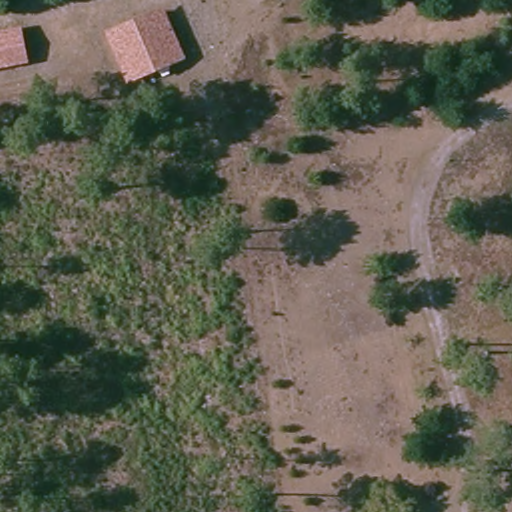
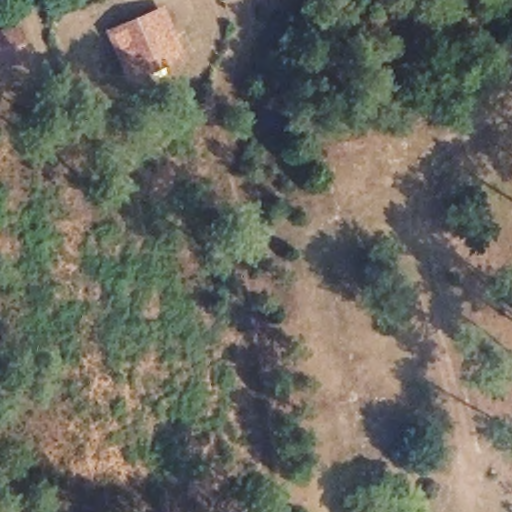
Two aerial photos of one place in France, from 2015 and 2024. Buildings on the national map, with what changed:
unchanged [(164,7),(187,57),(129,83),(106,30),(164,7)]
unchanged [(25,64),(0,67),(0,29),(19,25),(25,64)]
unchanged [(57,172),(16,180),(7,135),(48,128),(57,172)]

